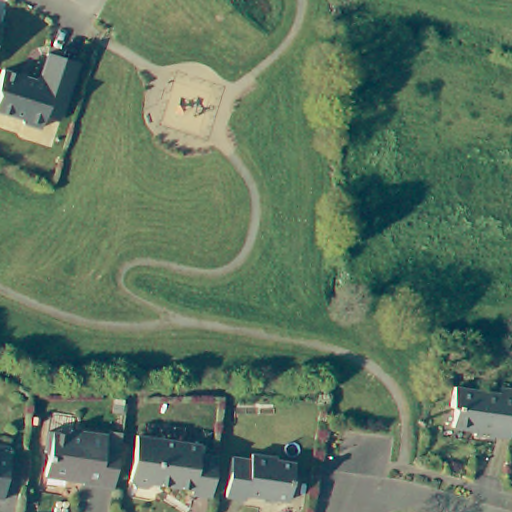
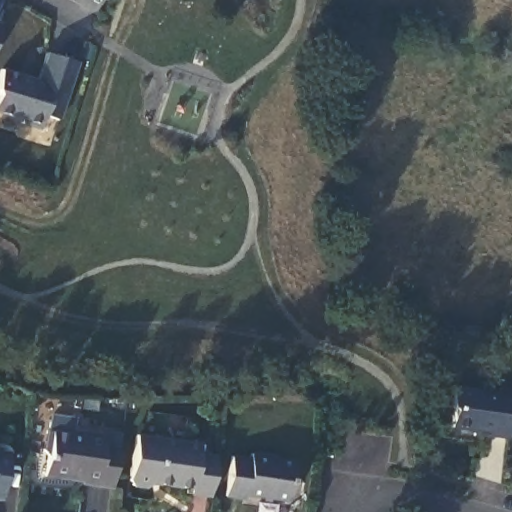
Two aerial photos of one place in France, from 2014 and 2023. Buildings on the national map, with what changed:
unchanged [(2,70),(34,79),(39,76),(46,53),(77,62),(60,120),(45,115),(41,128),(24,123),(21,118),(0,112),(0,76),(2,70)]
unchanged [(504,442),(489,440),(488,443),(469,440),(470,434),(448,431),(450,414),(446,410),(450,390),(494,398),(494,392),(511,394),(504,442)]
unchanged [(112,487),(83,482),(83,475),(70,473),(64,478),(45,474),(47,455),(42,449),(46,428),(65,431),(70,427),(105,432),(103,442),(118,444),(112,487)]
unchanged [(213,464),(209,495),(191,492),(191,487),(153,482),(148,486),(134,484),(129,478),(135,434),(199,443),(197,452),(215,455),(213,464)]
unchanged [(231,454),(249,457),(250,451),(269,454),(269,456),(292,460),(287,500),(245,492),(244,498),(225,494),(231,454)]
unchanged [(0,502),(0,456),(7,457),(0,502)]

